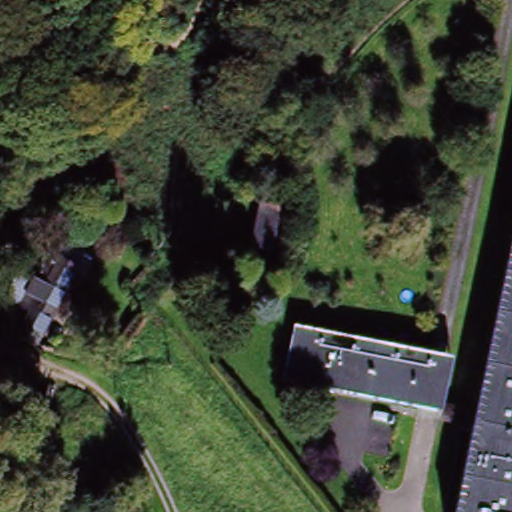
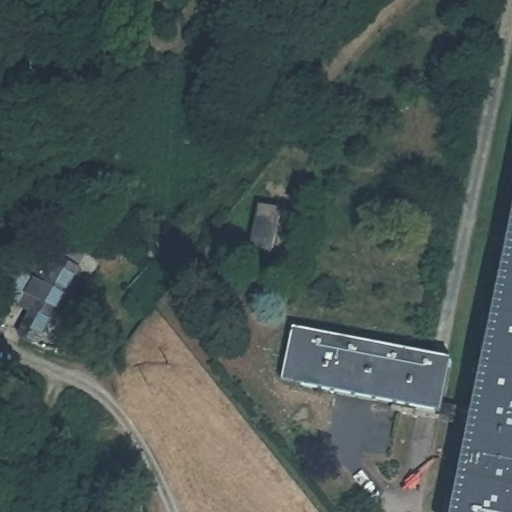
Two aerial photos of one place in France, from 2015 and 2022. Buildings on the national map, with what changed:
unchanged [(278,208),(270,253),(249,249),(257,203),(278,208)]
unchanged [(512,512),(451,512),(468,430),(472,412),(512,222),(512,512)]
unchanged [(73,278),(38,348),(18,336),(31,313),(17,304),(17,302),(0,291),(0,288),(14,266),(32,277),(47,252),(57,237),(78,250),(69,265),(77,270),(73,278)]
unchanged [(146,297),(138,306),(134,301),(142,291),(146,297)]
unchanged [(282,382),(293,328),(450,362),(441,405),(438,416),(389,406),(282,382)]

